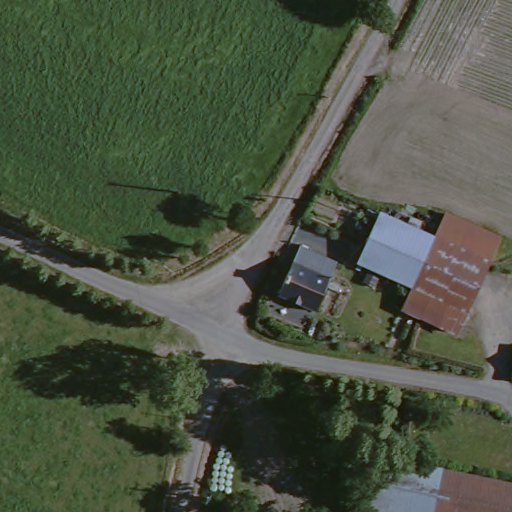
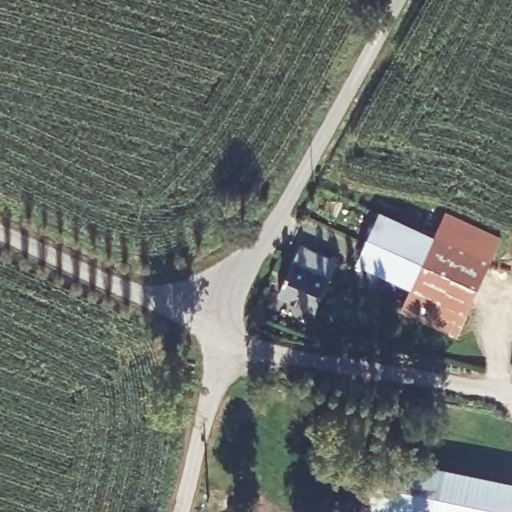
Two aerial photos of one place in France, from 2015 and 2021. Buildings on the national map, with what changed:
unchanged [(366,251),(387,207),(442,235),(437,246),(425,240),(408,273),(366,251)]
unchanged [(455,209),(507,234),(463,328),(423,310),(408,303),(420,278),(408,273),(425,240),(437,246),(442,235),(455,209)]
unchanged [(342,258),(322,308),(283,292),(305,242),(342,258)]
unchanged [(378,451),(449,466),(438,512),(365,512),(373,472),(378,451)]
unchanged [(512,479),(512,512),(438,512),(449,466),(512,479)]

